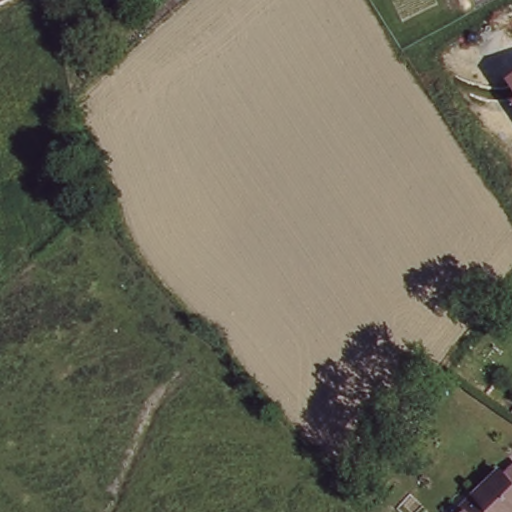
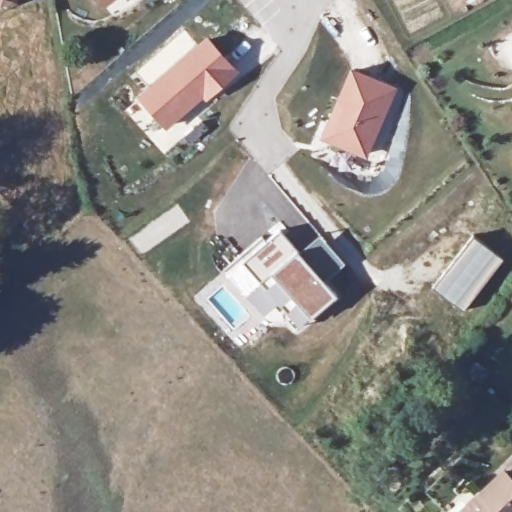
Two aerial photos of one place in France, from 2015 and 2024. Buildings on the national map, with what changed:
unchanged [(99,0),(117,0),(105,9),(99,0)]
new [(206,100),(203,97),(167,128),(137,97),(207,35),(240,71),(206,100)]
new [(367,158),(320,139),(352,66),(397,86),(367,158)]
new [(324,280),(335,295),(308,317),(298,326),(242,262),(279,229),(300,252),(320,235),(343,263),(324,280)]
new [(473,234),(503,258),(463,310),(432,288),(473,234)]
unchanged [(503,473),(512,483),(512,486),(504,493),(512,502),(512,512),(454,512),(468,499),(491,479),(493,482),(503,473)]

